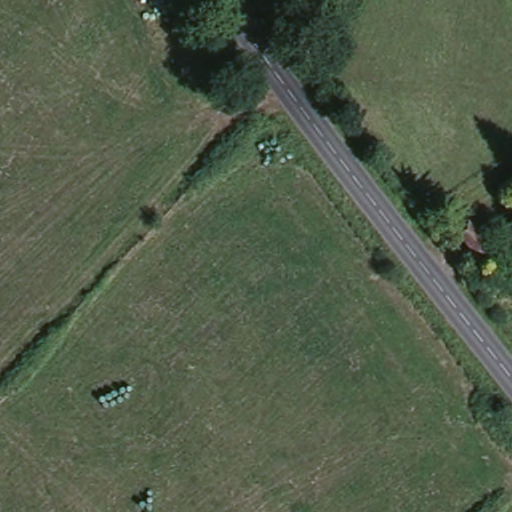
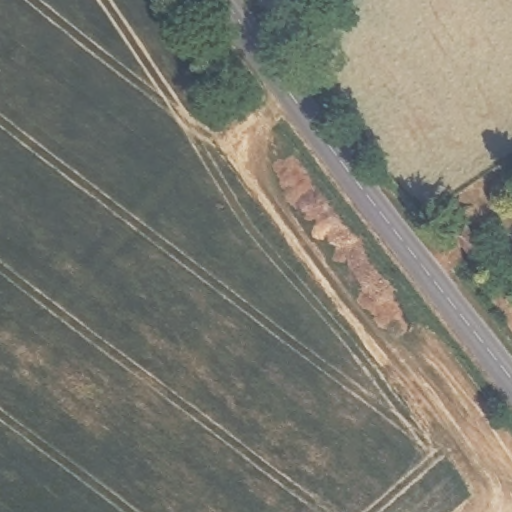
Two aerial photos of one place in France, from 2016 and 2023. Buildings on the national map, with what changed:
unchanged [(489,253),(475,263),(452,237),(469,225),(489,253)]

